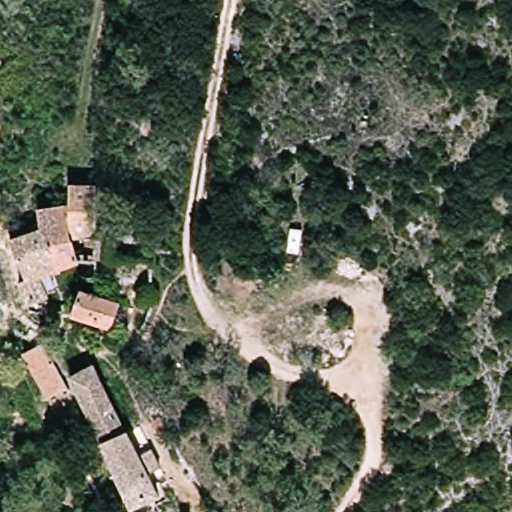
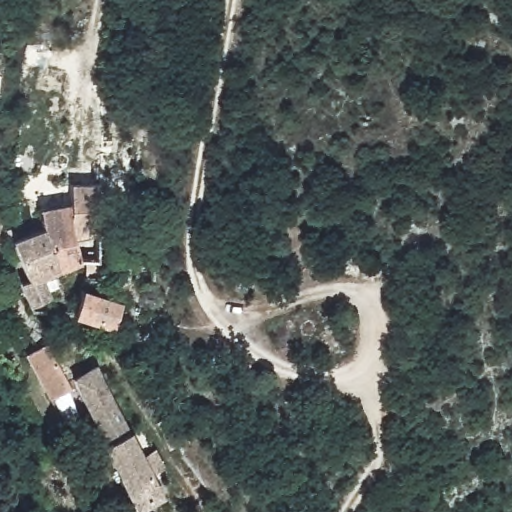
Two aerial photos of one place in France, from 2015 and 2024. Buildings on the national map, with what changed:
unchanged [(40,228),(37,211),(69,207),(68,188),(97,188),(97,236),(97,238),(73,243),(78,265),(38,279),(45,299),(24,306),(18,288),(19,287),(17,283),(22,281),(49,272),(40,231),(40,228)]
unchanged [(10,241),(40,231),(49,272),(22,281),(10,241)]
unchanged [(72,320),(74,294),(117,300),(112,327),(72,320)]
unchanged [(47,401),(22,359),(40,350),(63,393),(47,402),(47,401)]
unchanged [(138,501),(100,437),(85,413),(72,389),(65,379),(88,365),(110,401),(124,425),(161,486),(138,501)]

